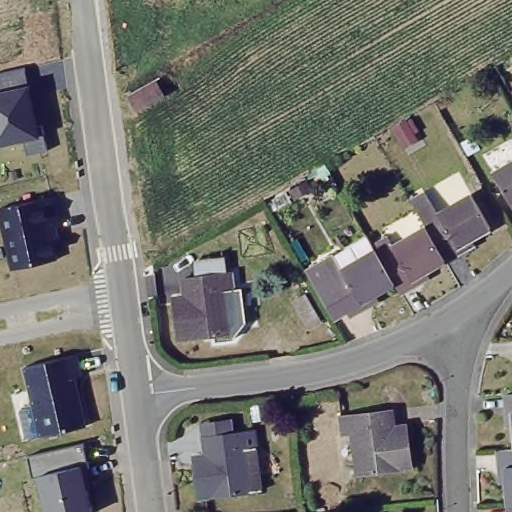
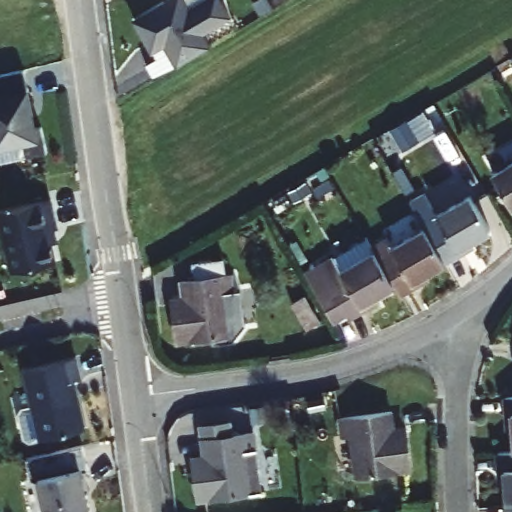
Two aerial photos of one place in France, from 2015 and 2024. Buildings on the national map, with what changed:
new [(189,7),(201,0),(223,0),(232,16),(205,31),(210,42),(174,64),(163,44),(150,51),(130,18),(161,0),(185,0),(189,7)]
unchanged [(24,67),(27,85),(37,124),(40,124),(46,152),(27,156),(23,142),(0,147),(0,72),(24,67)]
unchanged [(512,200),(495,171),(512,163),(512,200)]
unchanged [(332,314),(305,268),(319,261),(334,252),(367,233),(374,246),(379,254),(395,245),(393,242),(425,224),(412,202),(427,193),(437,210),(470,191),(489,224),(455,244),(459,250),(445,257),(412,276),(415,280),(400,289),(394,279),(359,298),(362,302),(346,310),(345,307),(332,314)]
unchanged [(58,239),(53,240),(57,260),(11,270),(0,224),(0,209),(49,197),(58,239)]
unchanged [(242,327),(228,329),(174,336),(169,299),(180,298),(178,276),(228,270),(230,287),(237,286),(242,327)]
unchanged [(22,367),(77,356),(82,375),(76,376),(87,425),(40,437),(30,440),(25,437),(19,413),(22,407),(32,405),(22,367)]
unchanged [(510,448),(507,409),(500,409),(499,394),(512,393),(512,501),(503,502),(500,466),(494,466),(492,449),(510,448)]
unchanged [(391,428),(405,428),(408,462),(350,470),(345,428),(339,428),(337,409),(389,403),(391,428)]
unchanged [(255,450),(249,451),(253,492),(197,498),(193,463),(200,462),(197,438),(199,438),(197,424),(229,421),(230,434),(254,431),(255,450)]
unchanged [(92,512),(45,512),(37,476),(31,478),(27,457),(83,443),(89,465),(82,466),(92,512)]
unchanged [(512,501),(512,512),(504,512),(503,502),(512,501)]

